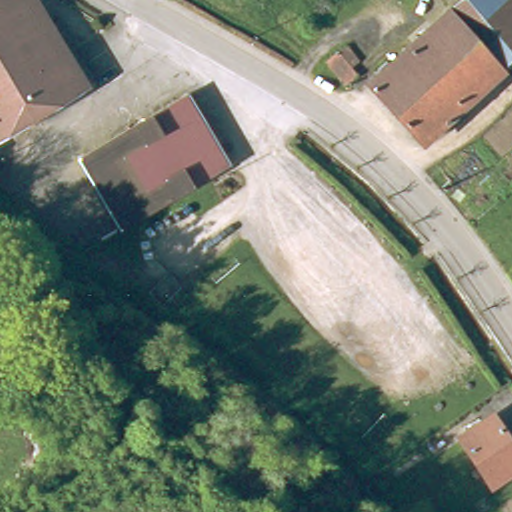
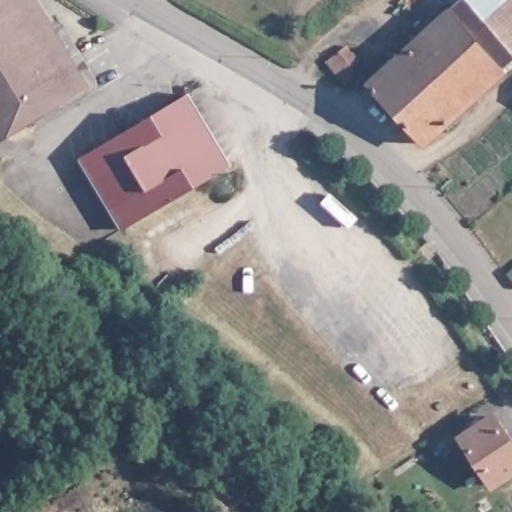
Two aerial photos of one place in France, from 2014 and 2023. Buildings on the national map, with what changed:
unchanged [(25,0),(31,0),(85,86),(4,135),(0,128),(0,3),(3,7),(6,12),(25,0)]
unchanged [(494,0),(512,22),(512,64),(503,72),(453,12),(466,0),(494,0)]
unchanged [(494,0),(512,0),(512,22),(494,0)]
unchanged [(453,12),(503,72),(505,74),(427,143),(374,84),(453,12)]
unchanged [(343,56),(352,66),(361,77),(350,87),(332,64),(343,56)]
unchanged [(229,165),(233,172),(215,185),(129,236),(85,160),(191,98),(229,165)]
unchanged [(512,447),(512,482),(497,492),(466,443),(498,423),(512,447)]

